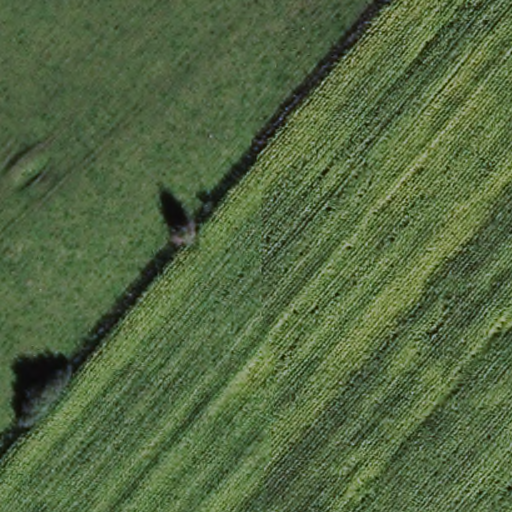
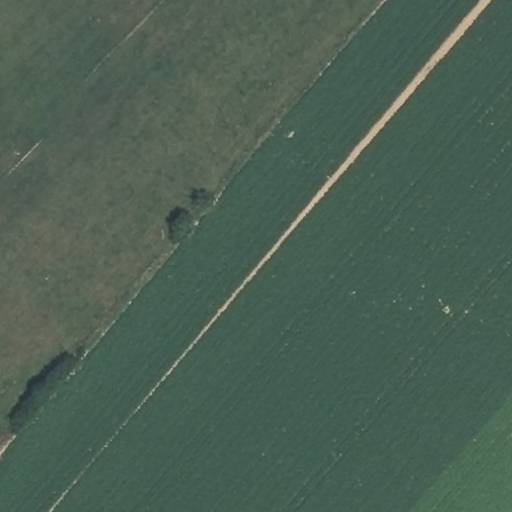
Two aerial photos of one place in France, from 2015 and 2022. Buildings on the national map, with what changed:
[]

